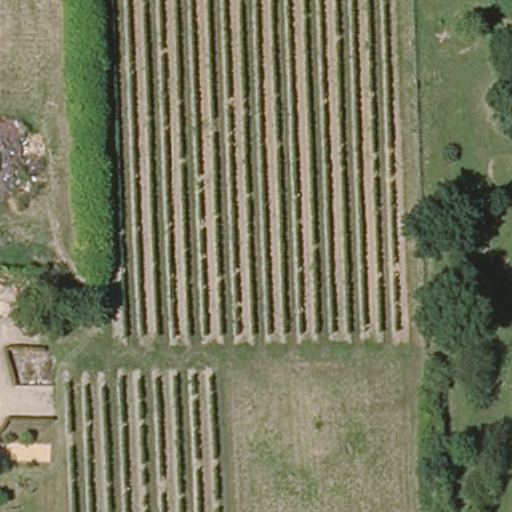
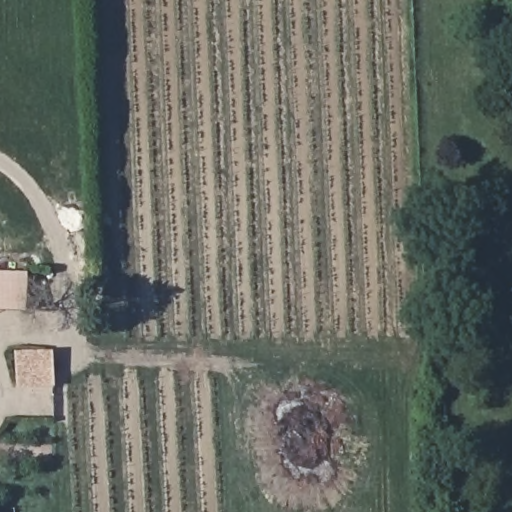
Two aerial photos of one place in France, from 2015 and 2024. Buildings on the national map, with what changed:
new [(22,267),(21,305),(0,305),(0,267),(22,267)]
new [(53,385),(14,387),(13,351),(52,350),(53,385)]

